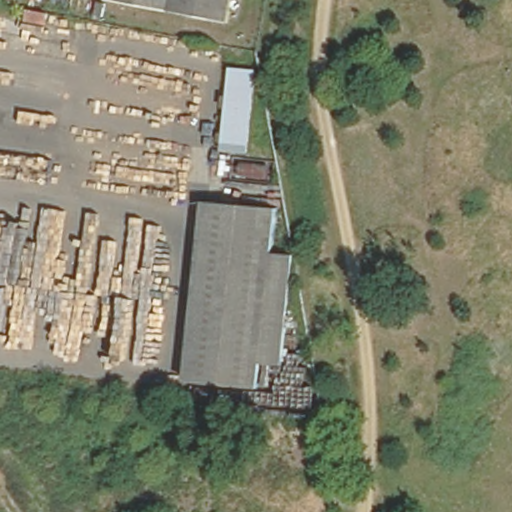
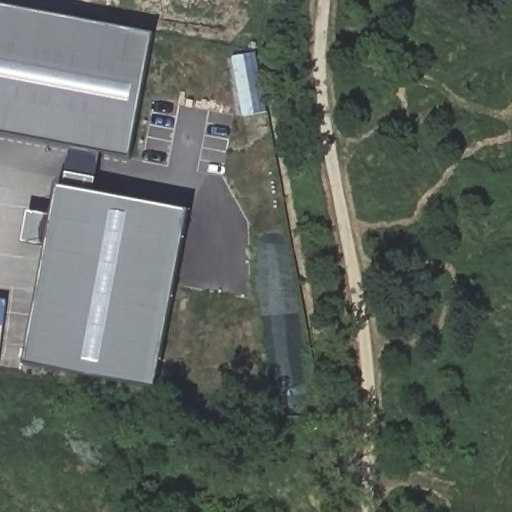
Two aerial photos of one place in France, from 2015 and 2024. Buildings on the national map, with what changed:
unchanged [(147,14),(110,6),(111,0),(231,0),(226,29),(147,14)]
new [(128,161),(0,137),(0,10),(149,37),(128,161)]
demolished [(235,75),(260,77),(251,160),(226,157),(235,75)]
new [(154,389),(25,364),(47,249),(22,244),(28,213),(53,218),(59,189),(64,190),(67,174),(96,180),(94,195),(188,214),(154,389)]
demolished [(188,388),(206,209),(276,216),(258,396),(188,388)]

